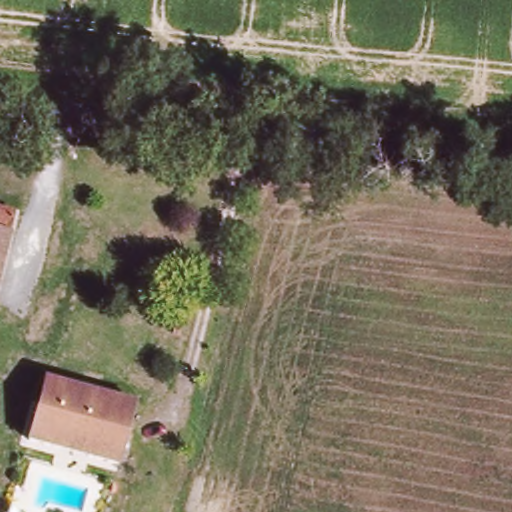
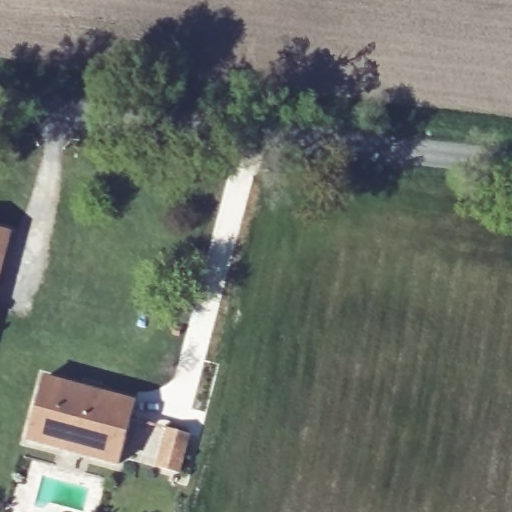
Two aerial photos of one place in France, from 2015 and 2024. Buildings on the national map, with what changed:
unchanged [(12,212),(7,234),(0,232),(0,209),(12,212)]
unchanged [(7,234),(0,264),(0,232),(7,234)]
unchanged [(117,467),(29,444),(46,381),(134,405),(117,467)]
new [(166,428),(191,434),(180,474),(156,467),(166,428)]

